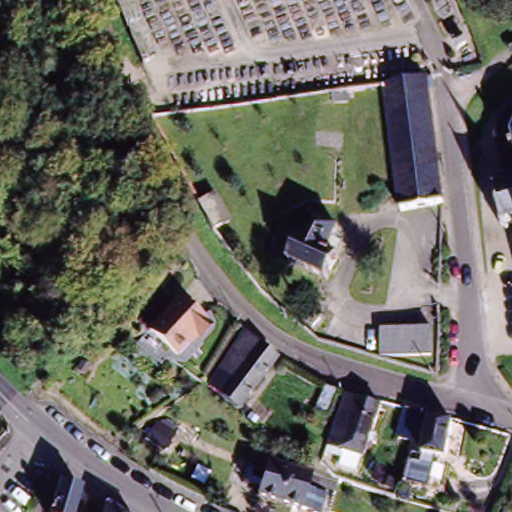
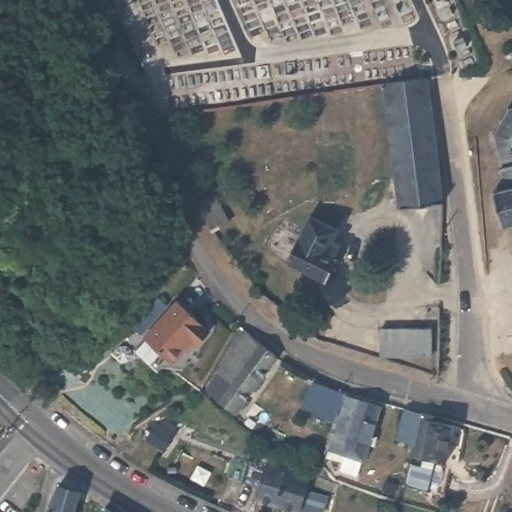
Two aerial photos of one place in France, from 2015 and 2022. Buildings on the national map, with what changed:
unchanged [(402,220),(384,93),(399,91),(427,87),(428,89),(440,177),(445,215),(402,220)]
unchanged [(353,100),(339,102),(338,96),(352,94),(353,100)]
unchanged [(512,230),(512,232),(508,233),(507,230),(505,230),(504,229),(501,229),(500,225),(504,224),(498,201),(495,202),(494,196),(497,195),(496,191),(500,190),(501,194),(509,191),(506,177),(502,178),(501,174),(504,173),(501,157),(497,157),(497,153),(500,153),(498,141),(494,139),(495,136),(499,136),(504,128),(501,126),(503,123),(506,125),(511,115),(508,112),(511,110),(512,111),(512,228),(512,229),(512,230)]
unchanged [(216,199),(230,226),(215,234),(200,206),(216,199)]
unchanged [(289,245),(296,250),(314,219),(341,235),(328,255),(340,262),(328,284),(290,261),(291,258),(284,255),(289,245)]
unchanged [(184,301),(213,331),(200,343),(197,341),(177,362),(150,335),(184,301)]
unchanged [(432,332),(431,360),(382,357),(384,330),(432,332)]
unchanged [(236,420),(216,405),(229,386),(217,378),(243,333),(259,345),(278,360),(236,420)]
unchanged [(335,416),(321,411),(331,383),(345,390),(335,416)]
unchanged [(350,395),(384,406),(368,460),(365,459),(360,475),(342,470),(345,460),(330,456),(333,449),(350,395)]
unchanged [(450,493),(434,491),(406,487),(412,467),(414,461),(415,456),(419,442),(403,438),(411,408),(427,413),(437,415),(436,422),(456,426),(449,462),(455,463),(450,493)]
unchanged [(145,467),(133,458),(154,427),(157,421),(163,425),(160,431),(166,435),(145,467)]
unchanged [(256,505),(267,470),(289,476),(291,470),(297,472),(295,478),(310,482),(306,497),(326,503),(324,512),(281,512),(278,511),(256,505)]
unchanged [(395,495),(387,492),(389,483),(397,485),(395,495)]
unchanged [(55,512),(56,507),(60,494),(81,500),(77,512),(55,512)]
unchanged [(118,512),(109,512),(110,507),(118,512)]

